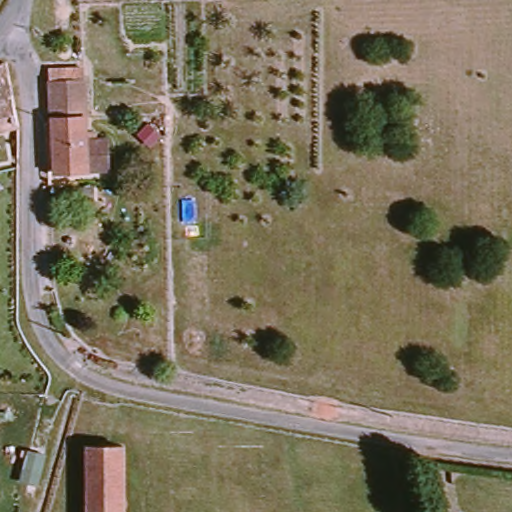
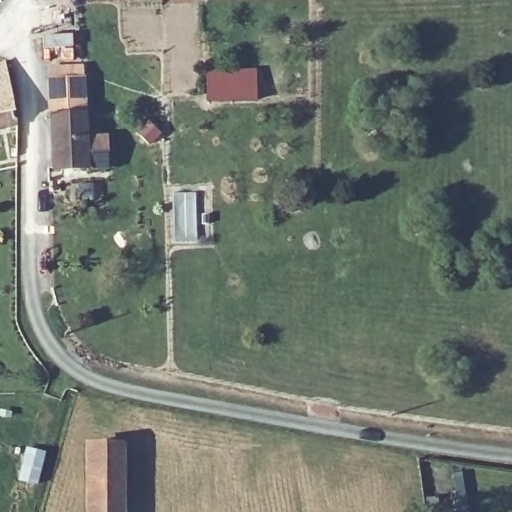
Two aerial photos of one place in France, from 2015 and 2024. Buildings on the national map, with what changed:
unchanged [(88,131),(88,138),(103,138),(102,170),(46,170),(47,76),(47,64),(79,64),(79,76),(79,131),(88,131)]
new [(206,71),(255,69),(257,100),(208,102),(206,71)]
unchanged [(10,127),(0,130),(0,88),(10,127)]
new [(27,449),(44,454),(37,482),(20,478),(27,449)]
unchanged [(83,512),(84,449),(120,449),(118,512),(83,512)]

